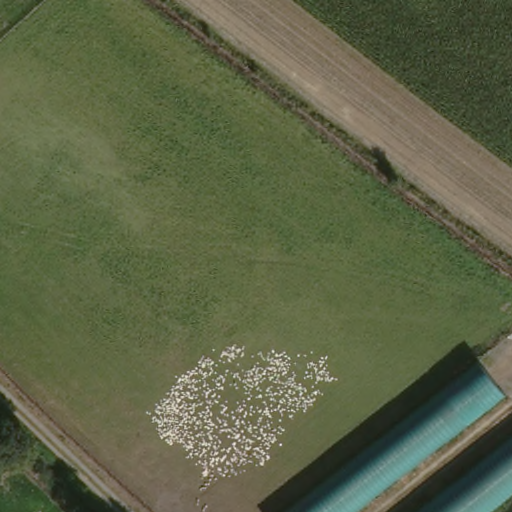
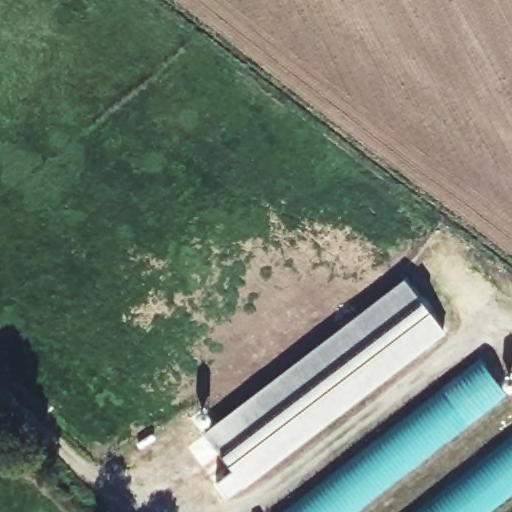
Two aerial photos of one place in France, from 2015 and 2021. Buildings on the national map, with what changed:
new [(403,278),(443,327),(247,487),(247,486),(232,499),(221,485),(236,473),(207,438),(403,278)]
unchanged [(286,512),(478,360),(504,394),(352,512),(286,512)]
unchanged [(485,512),(410,512),(512,434),(512,491),(485,512)]

